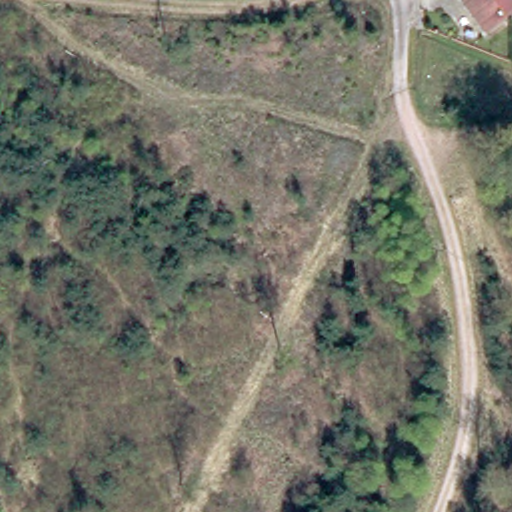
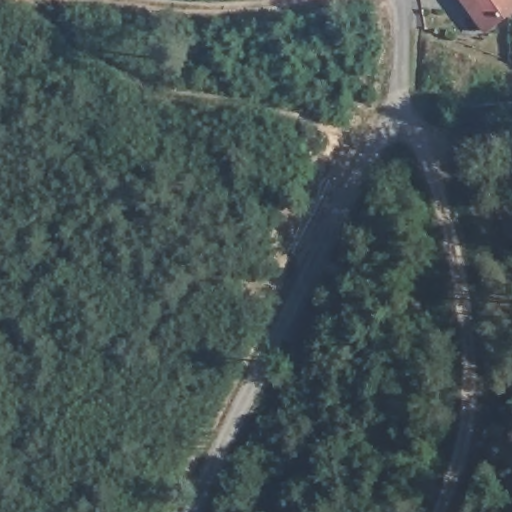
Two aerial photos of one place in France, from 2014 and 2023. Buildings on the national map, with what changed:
unchanged [(489,32),(489,31),(463,0),(512,0),(512,15),(489,32)]

